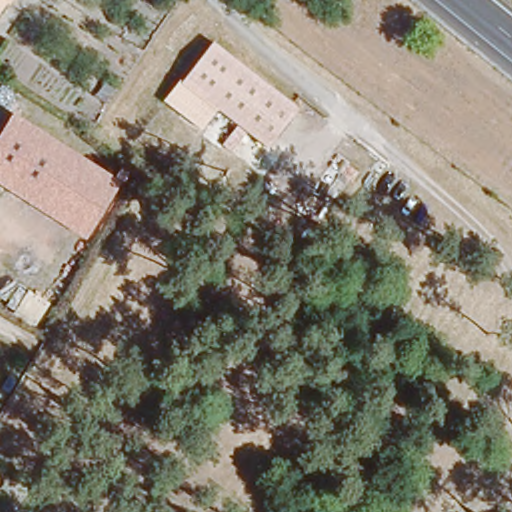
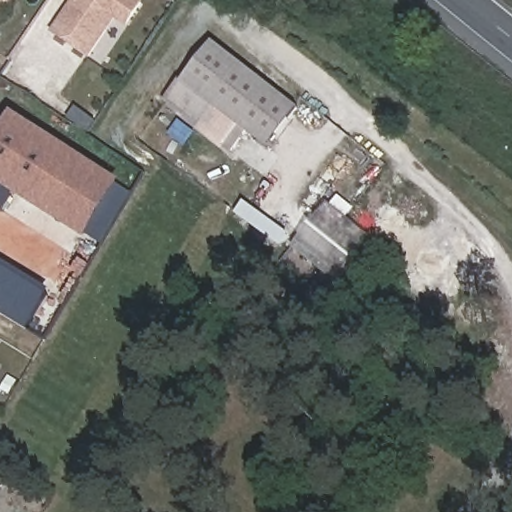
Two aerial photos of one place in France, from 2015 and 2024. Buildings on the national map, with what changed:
new [(5,4),(0,11),(0,0),(13,0),(11,4),(5,4)]
new [(90,60),(50,33),(71,0),(139,0),(142,2),(126,28),(114,21),(90,60)]
unchanged [(214,41),(301,109),(271,149),(220,111),(183,84),(214,41)]
unchanged [(179,82),(183,84),(220,111),(203,131),(164,101),(179,82)]
unchanged [(87,238),(0,183),(0,136),(14,115),(123,184),(87,238)]
new [(336,284),(290,249),(327,202),(372,238),(336,284)]
new [(46,294),(26,325),(0,310),(0,266),(46,294)]

